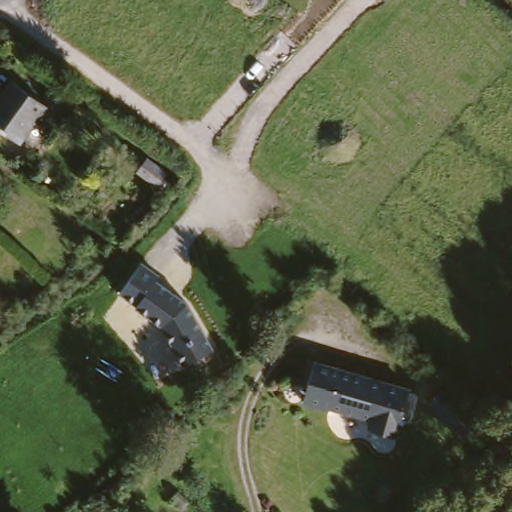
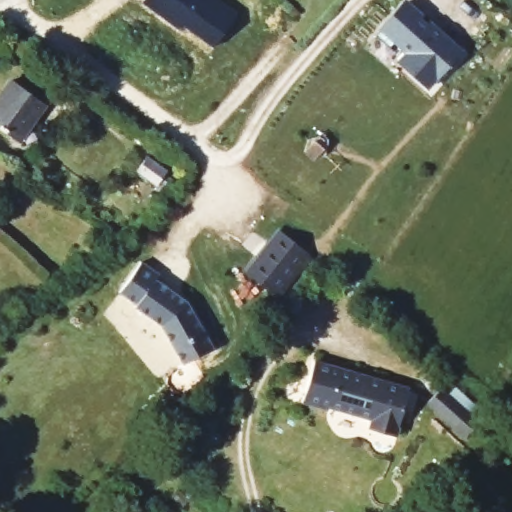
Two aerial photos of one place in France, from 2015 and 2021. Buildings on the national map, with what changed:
demolished [(489,0),(512,0),(512,23),(489,0)]
new [(376,33),(405,1),(456,46),(425,81),(399,58),(402,56),(388,44),(376,33)]
unchanged [(0,125),(0,93),(12,77),(45,100),(19,138),(0,125)]
new [(277,232),(304,256),(272,292),(246,268),(277,232)]
unchanged [(162,322),(160,325),(137,307),(140,303),(122,294),(140,262),(161,275),(156,281),(188,304),(212,349),(185,365),(162,322)]
unchanged [(408,383),(396,423),(298,392),(311,352),(408,383)]
unchanged [(464,439),(436,410),(430,404),(443,390),(450,397),(478,425),(464,439)]

